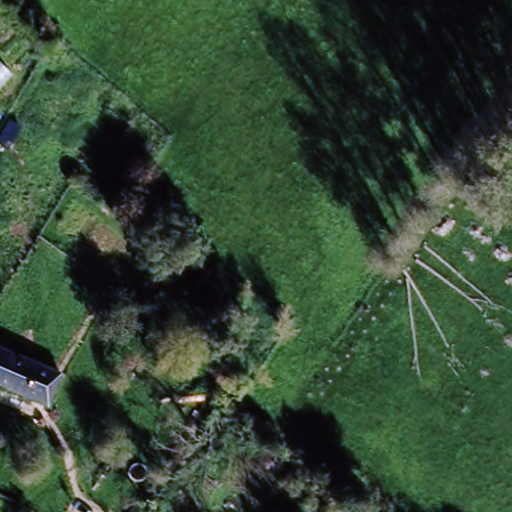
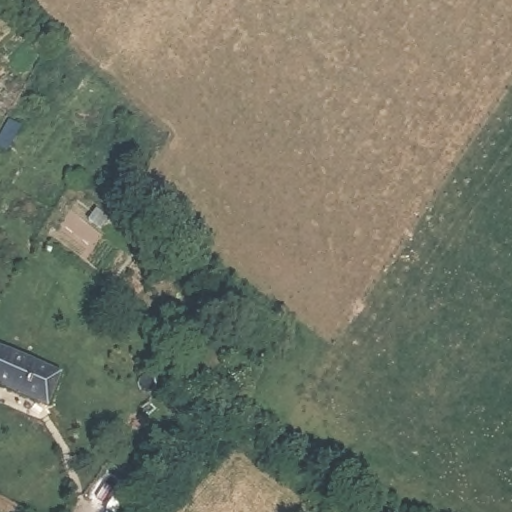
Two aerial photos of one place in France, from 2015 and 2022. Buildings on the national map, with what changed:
unchanged [(236,319),(226,334),(202,318),(212,303),(236,319)]
unchanged [(59,403),(0,381),(0,345),(71,372),(59,403)]

